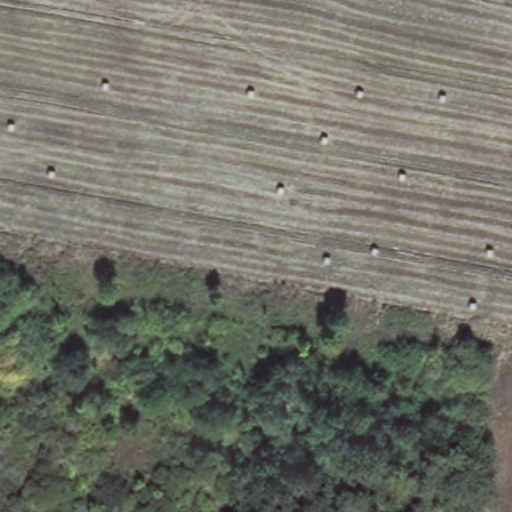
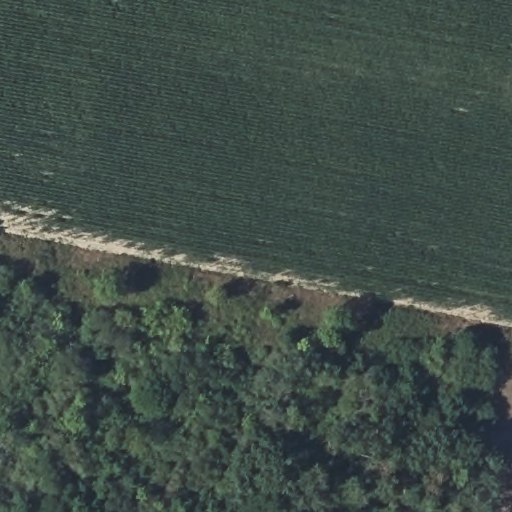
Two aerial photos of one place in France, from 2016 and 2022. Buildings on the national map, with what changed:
[]

